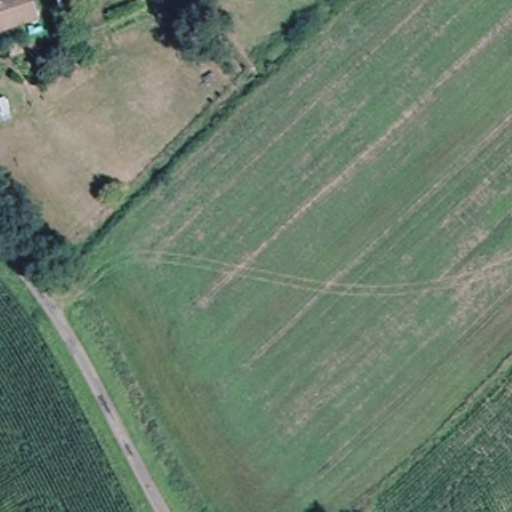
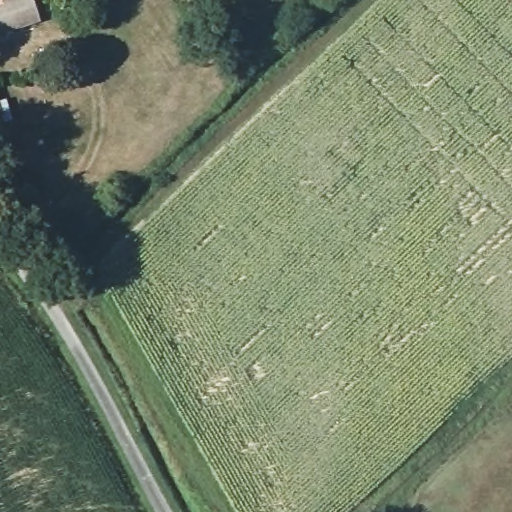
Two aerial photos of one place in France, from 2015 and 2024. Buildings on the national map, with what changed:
unchanged [(35,0),(44,22),(0,37),(0,8),(24,0),(35,0)]

